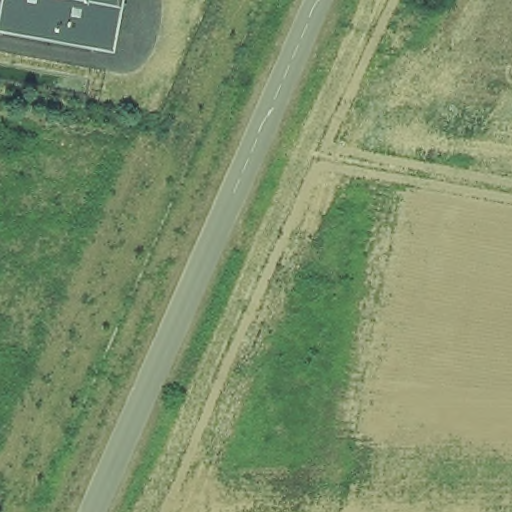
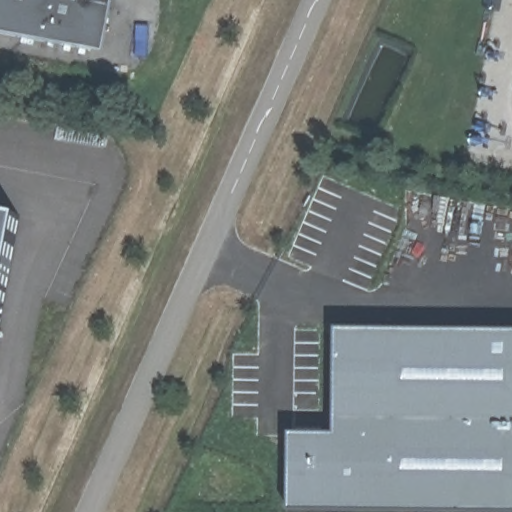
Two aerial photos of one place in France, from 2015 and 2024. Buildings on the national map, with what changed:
unchanged [(0,33),(0,0),(117,0),(107,54),(0,33)]
new [(0,219),(15,222),(0,320),(0,219)]
new [(512,334),(512,512),(293,512),(290,436),(337,437),(337,333),(512,334)]

